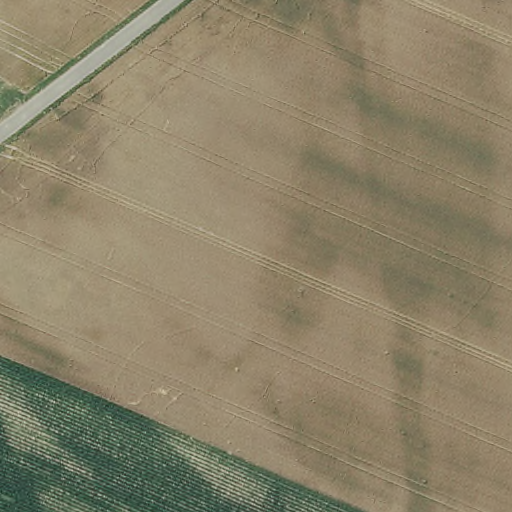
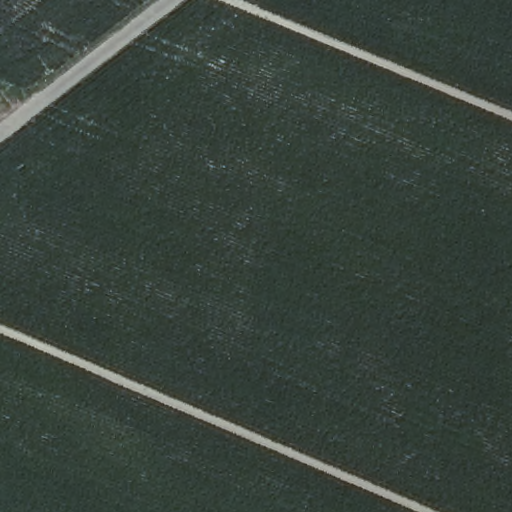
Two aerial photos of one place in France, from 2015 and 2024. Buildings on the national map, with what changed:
[]

